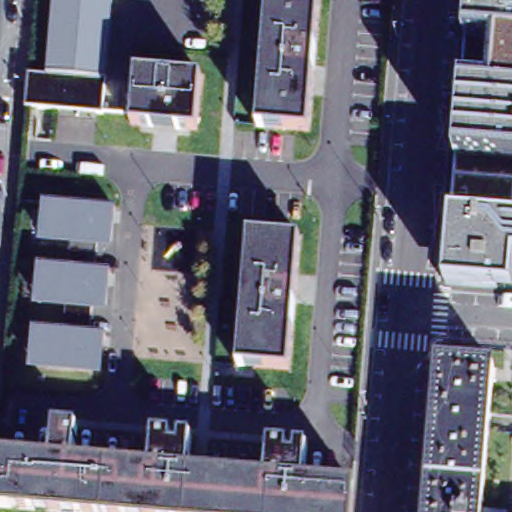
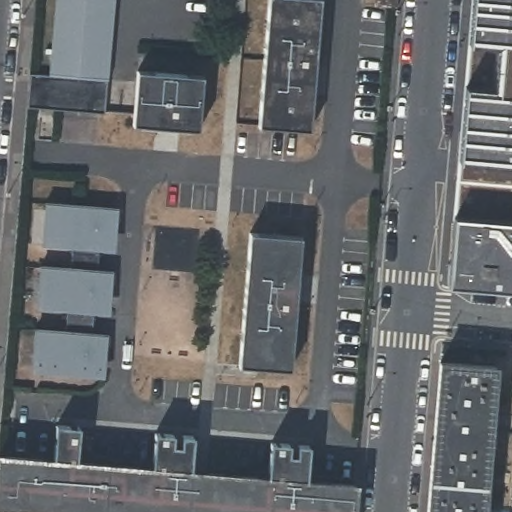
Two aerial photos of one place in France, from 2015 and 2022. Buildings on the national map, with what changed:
unchanged [(26,102),(29,76),(29,70),(50,72),(56,0),(113,0),(104,108),(29,102),(26,102)]
unchanged [(265,123),(275,0),(327,0),(316,128),(265,123)]
unchanged [(376,4),(376,0),(396,0),(396,6),(376,4)]
unchanged [(456,160),(463,84),(491,86),(493,46),(466,44),(469,0),(512,0),(512,164),(456,160)]
unchanged [(133,124),(134,113),(138,70),(204,76),(199,130),(133,124)]
unchanged [(456,160),(512,164),(512,221),(452,216),(456,160)]
unchanged [(41,332),(71,334),(73,303),(44,300),(46,268),(76,270),(78,239),(50,236),(52,204),(121,210),(118,242),(105,241),(102,272),(116,273),(113,306),(99,305),(96,336),(110,337),(108,370),(39,364),(41,332)]
unchanged [(512,221),(512,290),(447,284),(452,216),(512,221)]
unchanged [(307,234),(296,367),(244,363),(255,230),(307,234)]
unchanged [(442,363),(446,363),(498,368),(486,512),(430,512),(442,363)]
unchanged [(36,512),(0,509),(0,469),(1,457),(3,457),(36,460),(59,462),(62,427),(85,429),(81,464),(157,470),(160,435),(198,438),(195,474),(272,480),(275,445),(313,448),(310,483),(359,487),(356,512),(37,512),(36,512)]

